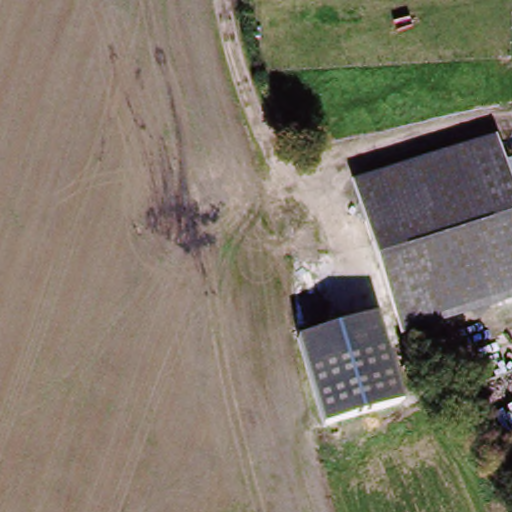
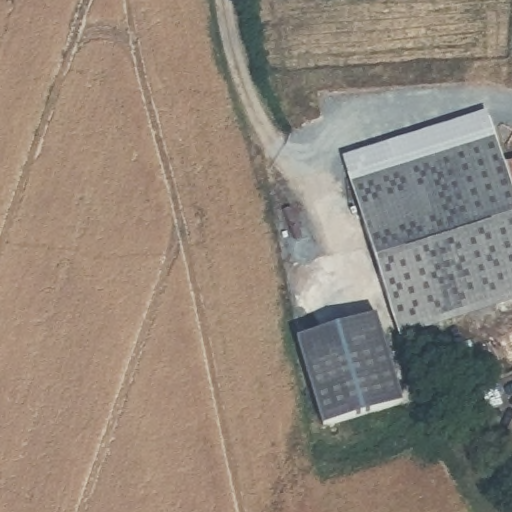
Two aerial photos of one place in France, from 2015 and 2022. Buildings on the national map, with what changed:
unchanged [(246,0),(281,0),(247,5),(246,0)]
unchanged [(494,140),(506,170),(512,168),(512,305),(400,340),(351,186),(494,140)]
unchanged [(401,405),(325,428),(298,340),(376,315),(401,405)]

